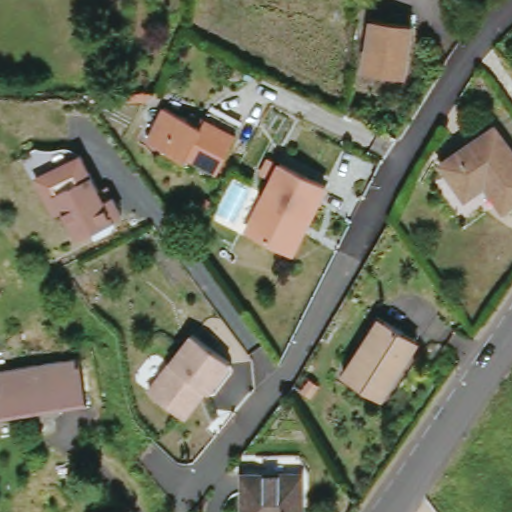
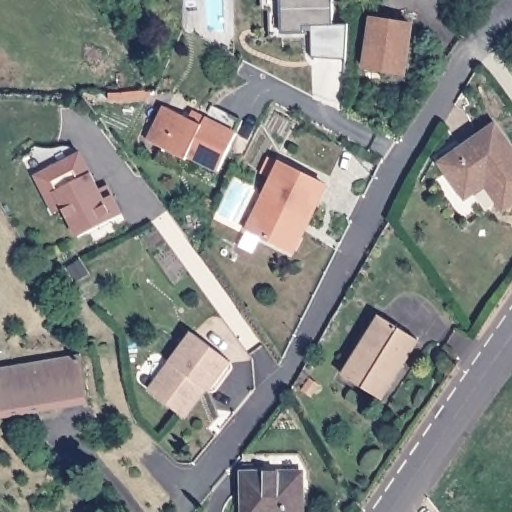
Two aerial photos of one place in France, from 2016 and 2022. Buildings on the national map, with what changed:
new [(333,25),(347,25),(345,60),(313,58),(313,39),(271,39),(270,10),(262,9),(262,0),(332,0),(333,25)]
unchanged [(404,75),(365,69),(372,19),(413,24),(404,75)]
unchanged [(223,118),(241,127),(219,170),(188,156),(186,159),(148,141),(165,107),(189,119),(193,113),(206,119),(219,125),(223,118)]
unchanged [(489,187),(492,184),(488,178),(464,195),(442,163),(496,126),(512,149),(512,205),(504,211),(489,187)]
unchanged [(48,195),(38,175),(82,153),(100,189),(108,185),(113,195),(123,214),(79,235),(65,207),(56,212),(48,195)]
unchanged [(284,247),(249,230),(281,164),(326,185),(310,218),(293,252),(284,247)]
unchanged [(377,396),(344,376),(366,342),(382,316),(387,320),(418,339),(398,373),(382,399),(377,396)]
unchanged [(181,416),(149,392),(192,334),(231,363),(209,392),(207,391),(186,419),(181,416)]
unchanged [(85,352),(93,399),(0,414),(0,365),(85,352)]
unchanged [(318,387),(312,397),(303,391),(310,381),(318,387)]
unchanged [(242,512),(243,474),(301,473),(301,512),(242,512)]

